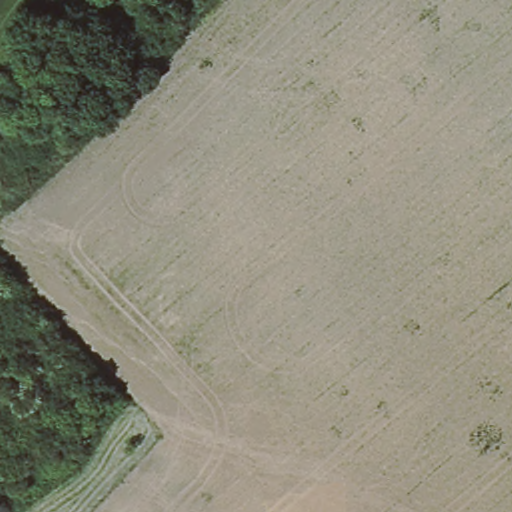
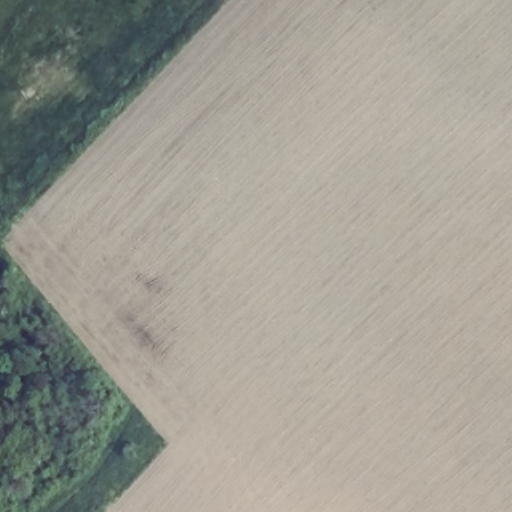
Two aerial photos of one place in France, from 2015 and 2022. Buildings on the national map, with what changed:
unchanged [(141,23),(118,0),(164,0),(141,23)]

